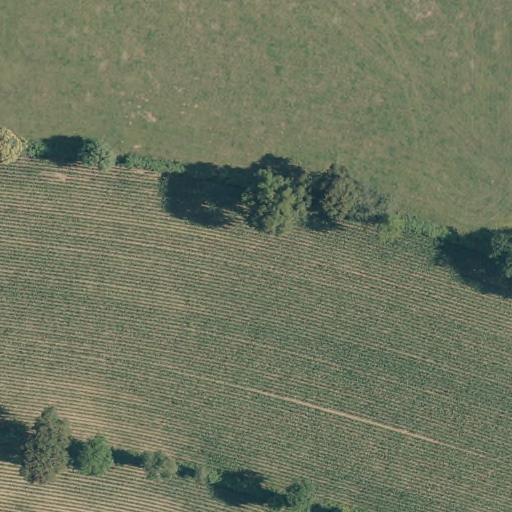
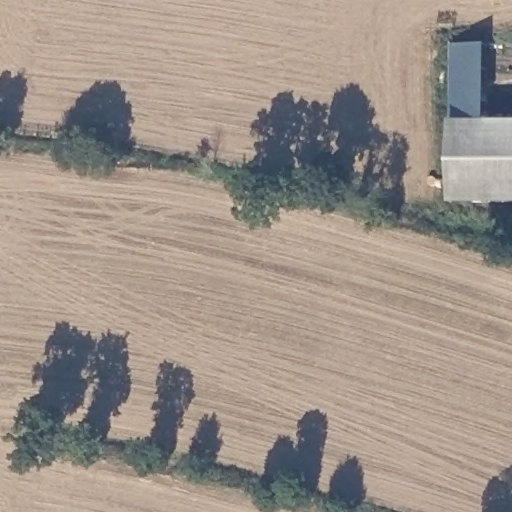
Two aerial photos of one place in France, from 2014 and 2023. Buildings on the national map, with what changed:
new [(451,203),(451,121),(449,42),(492,39),(497,112),(512,112),(512,203),(451,203)]

